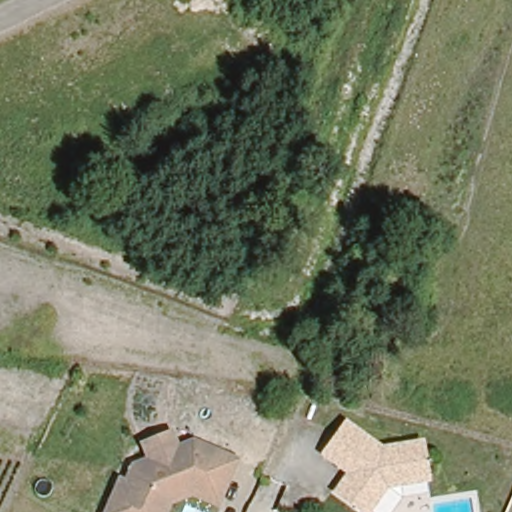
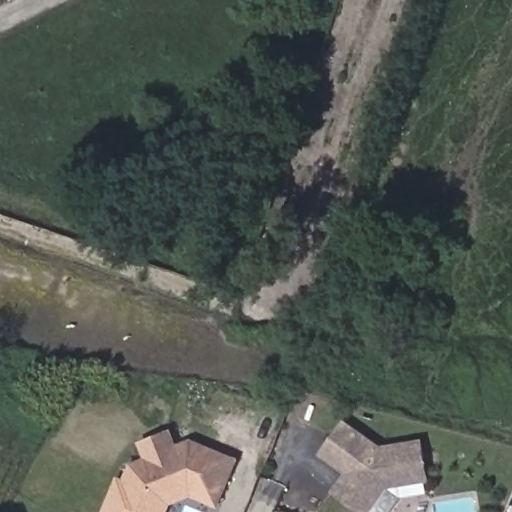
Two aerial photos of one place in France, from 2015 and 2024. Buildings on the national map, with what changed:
unchanged [(377,441),(423,437),(428,473),(382,479),(362,508),(332,487),(346,468),(321,450),(344,418),(377,441)]
unchanged [(192,499),(171,508),(169,512),(105,512),(120,478),(126,479),(134,460),(142,455),(140,442),(174,430),(179,443),(194,439),(242,458),(220,511),(192,499)]

